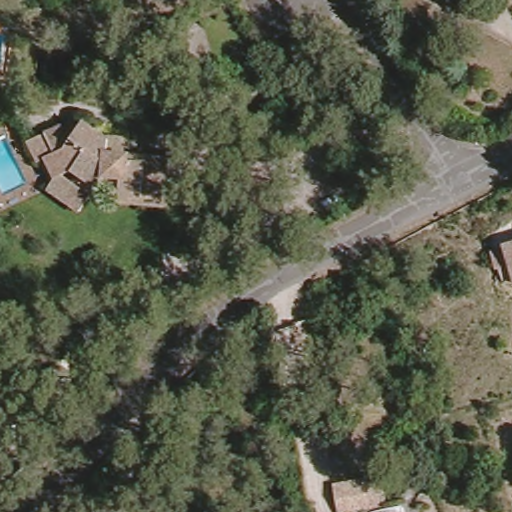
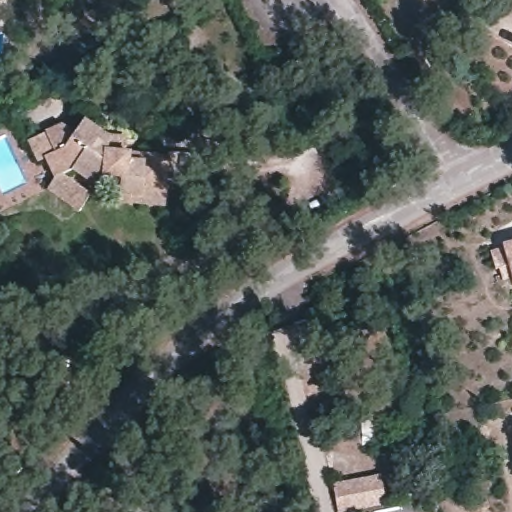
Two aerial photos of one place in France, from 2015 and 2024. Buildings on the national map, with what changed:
unchanged [(50,189),(57,178),(48,157),(39,161),(30,141),(47,133),(63,124),(75,134),(85,120),(107,137),(124,137),(123,152),(167,155),(167,152),(195,154),(193,180),(165,180),(163,204),(119,201),(119,184),(97,183),(95,185),(79,209),(50,189)]
unchanged [(491,270),(486,254),(500,250),(499,247),(512,243),(512,284),(505,266),(491,270)]
unchanged [(343,512),(338,512),(333,486),(380,476),(385,502),(343,512)]

